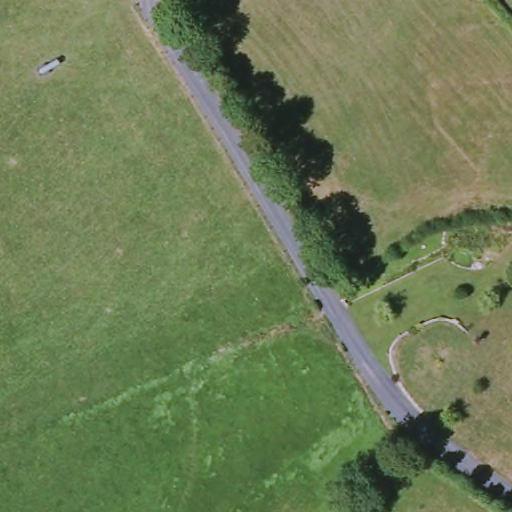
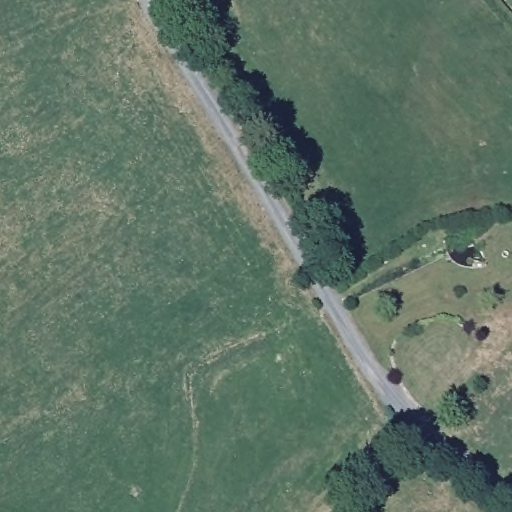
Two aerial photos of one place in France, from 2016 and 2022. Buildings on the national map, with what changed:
[]

